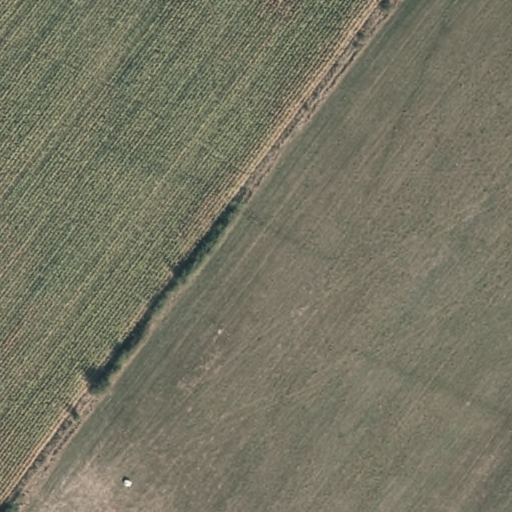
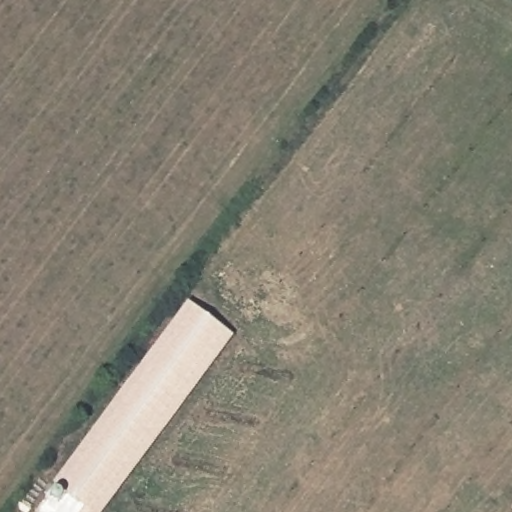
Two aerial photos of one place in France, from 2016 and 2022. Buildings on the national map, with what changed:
new [(187,306),(231,338),(100,512),(82,512),(50,488),(187,306)]

